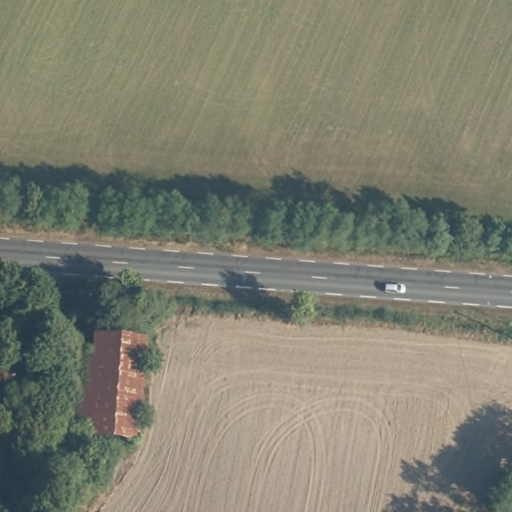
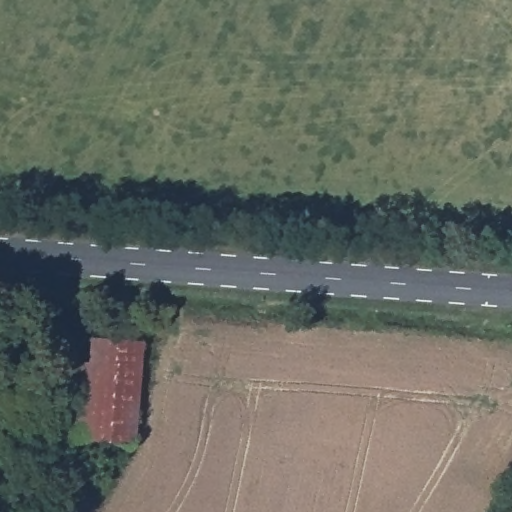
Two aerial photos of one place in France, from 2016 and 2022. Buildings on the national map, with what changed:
unchanged [(140,439),(75,434),(80,358),(95,358),(95,335),(148,339),(140,439)]
unchanged [(74,451),(60,450),(61,437),(64,410),(55,409),(58,355),(63,356),(65,347),(80,349),(80,358),(75,434),(74,451)]

